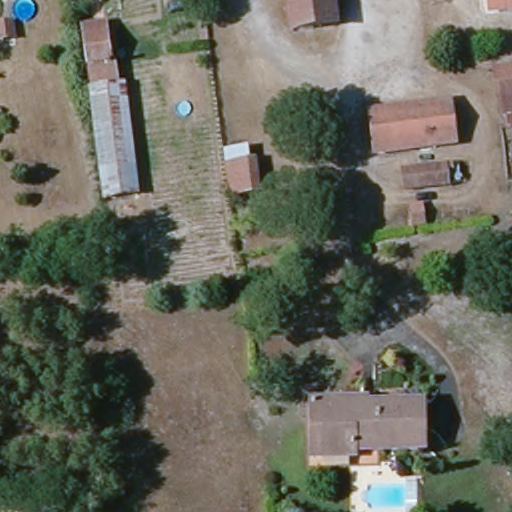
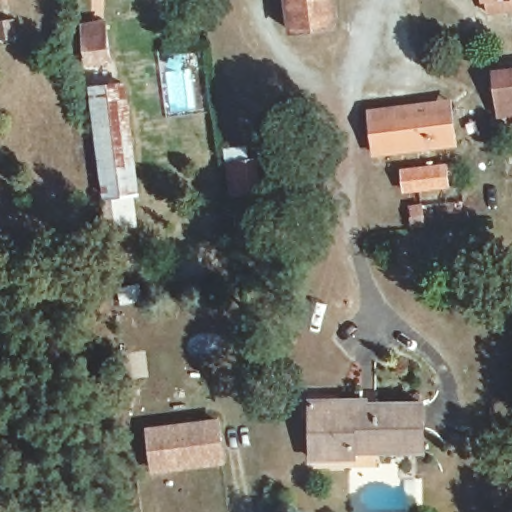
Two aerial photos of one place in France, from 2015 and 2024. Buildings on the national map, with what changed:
unchanged [(318,25),(288,29),(285,0),(330,0),(333,23),(318,25)]
unchanged [(512,7),(477,12),(476,0),(512,0),(512,7)]
unchanged [(101,75),(81,77),(76,21),(95,18),(101,75)]
unchanged [(18,20),(20,32),(0,35),(0,22),(18,20)]
unchanged [(293,69),(314,67),(315,77),(322,77),(327,109),(285,113),(285,107),(282,82),(294,80),(293,69)]
unchanged [(498,114),(494,71),(512,69),(512,125),(500,126),(498,114)]
unchanged [(95,192),(91,159),(82,83),(111,80),(121,155),(125,187),(95,192)]
unchanged [(371,148),(367,117),(367,108),(448,100),(449,109),(451,141),(371,148)]
unchanged [(246,189),(227,192),(222,152),(241,150),(246,189)]
unchanged [(400,182),(398,161),(447,157),(447,169),(441,169),(441,178),(442,189),(406,192),(401,194),(400,182)]
unchanged [(353,396),(355,402),(417,398),(420,444),(352,447),(352,454),(311,455),(308,397),(353,396)]
new [(221,417),(226,464),(152,473),(146,426),(221,417)]
unchanged [(404,483),(415,483),(416,498),(405,499),(404,483)]

